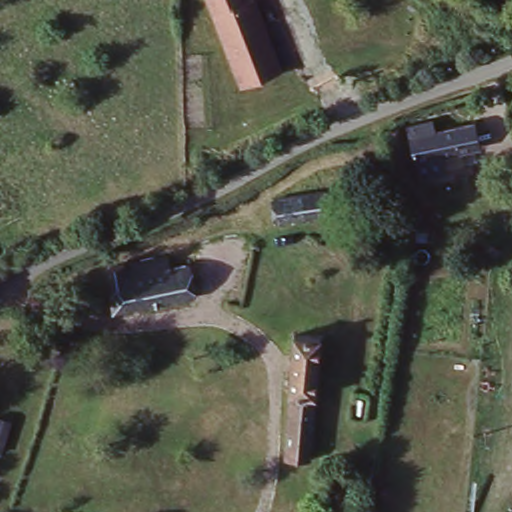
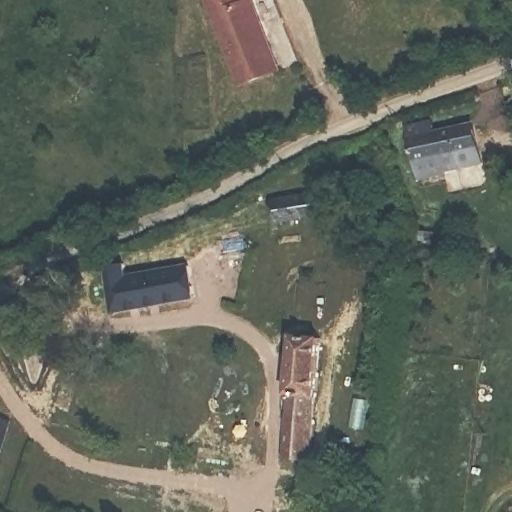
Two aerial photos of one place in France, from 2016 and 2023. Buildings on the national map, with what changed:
unchanged [(206,0),(255,0),(283,73),(241,88),(206,0)]
unchanged [(441,158),(445,177),(415,184),(401,124),(431,118),(436,131),(473,121),(480,146),(441,158)]
unchanged [(274,201),(326,192),(329,216),(276,222),(274,201)]
unchanged [(101,273),(157,261),(159,273),(183,268),(186,300),(108,314),(101,273)]
unchanged [(296,339),(321,341),(309,462),(284,460),(296,339)]
unchanged [(0,417),(8,420),(0,456),(0,417)]

